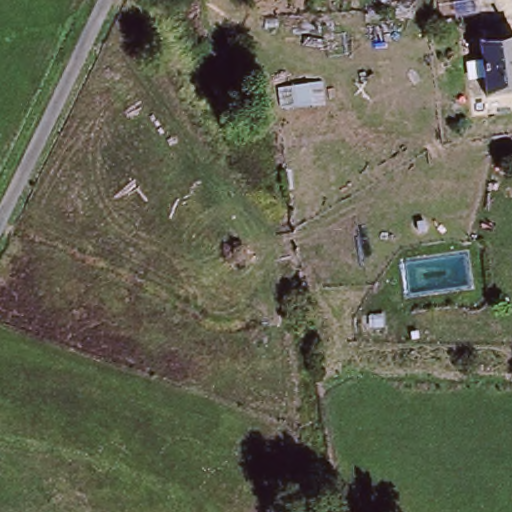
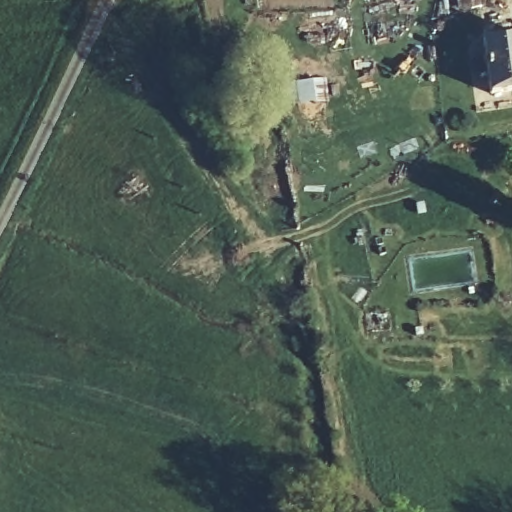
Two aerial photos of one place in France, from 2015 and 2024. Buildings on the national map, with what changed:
unchanged [(481,40),(512,35),(512,93),(490,96),(481,40)]

